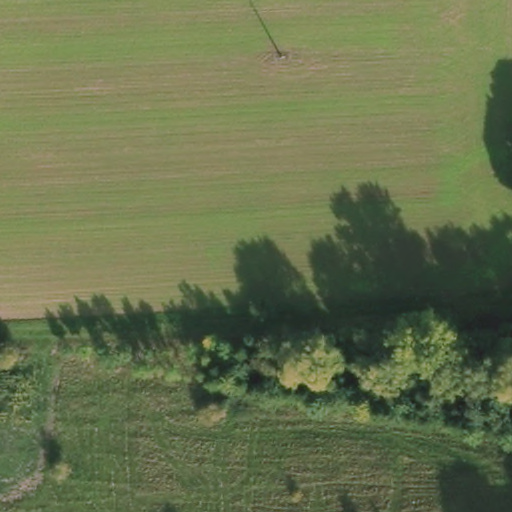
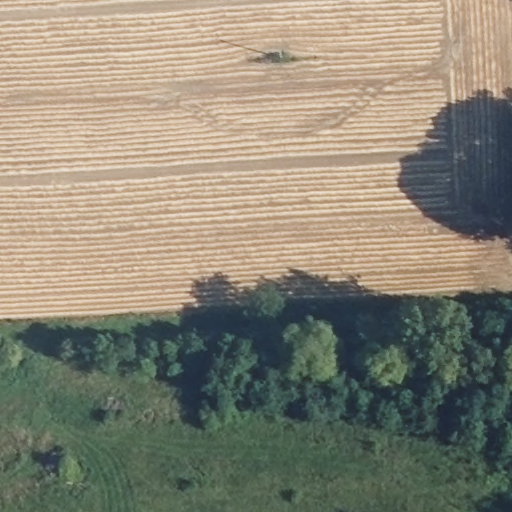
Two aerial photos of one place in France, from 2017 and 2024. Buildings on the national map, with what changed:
[]

